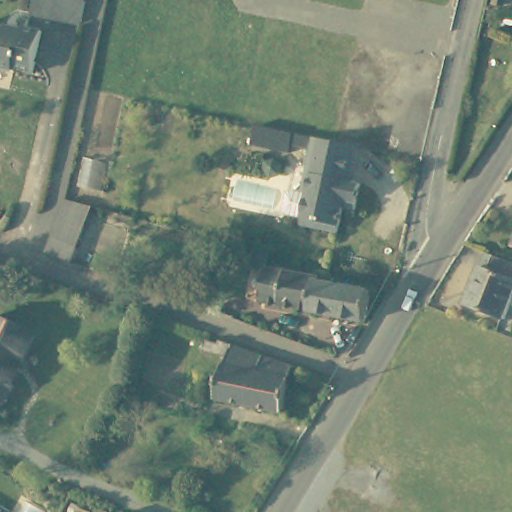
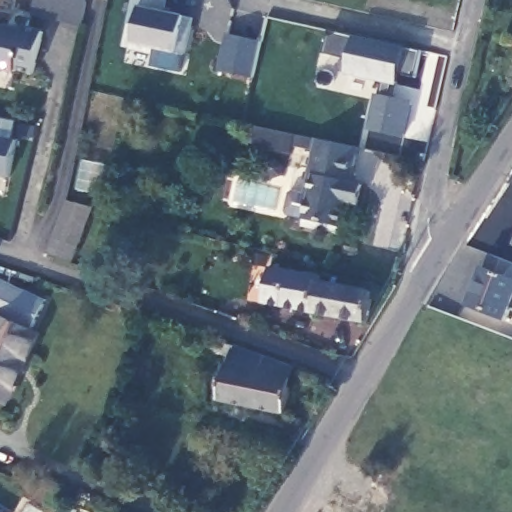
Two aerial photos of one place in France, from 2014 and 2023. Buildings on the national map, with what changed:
unchanged [(82,28),(36,18),(39,0),(79,0),(87,1),(82,28)]
new [(150,66),(155,49),(132,43),(136,25),(126,24),(130,0),(167,0),(166,11),(183,15),(194,18),(180,71),(150,66)]
unchanged [(32,71),(0,65),(0,25),(22,29),(24,22),(40,25),(32,71)]
new [(253,78),(218,71),(226,32),(261,41),(253,78)]
new [(415,76),(399,74),(396,86),(391,85),(392,97),(412,101),(403,137),(367,130),(375,93),(381,94),(383,83),(345,74),(347,60),(325,53),(330,33),(352,38),(355,36),(406,48),(420,51),(415,76)]
new [(317,151),(290,146),(289,153),(251,146),(256,126),(319,139),(317,151)]
new [(0,176),(0,137),(15,140),(9,177),(0,176)]
unchanged [(358,148),(355,172),(348,176),(352,180),(367,184),(361,211),(348,208),(342,233),(320,229),(321,222),(306,219),(312,194),(307,193),(319,139),(358,148)]
unchanged [(66,195),(93,204),(76,276),(47,266),(66,195)]
unchanged [(502,320),(463,305),(483,255),(512,265),(512,294),(502,320)]
unchanged [(260,301),(263,276),(251,274),(254,260),(315,272),(314,278),(307,309),(260,301)]
unchanged [(314,278),(367,286),(362,319),(307,309),(314,278)]
new [(0,316),(0,280),(43,301),(31,332),(1,316),(0,316)]
unchanged [(5,399),(0,397),(0,317),(1,316),(37,336),(5,399)]
unchanged [(230,342),(288,365),(281,413),(212,400),(222,354),(199,345),(203,331),(230,342)]
unchanged [(0,510),(3,512),(0,512),(0,510)]

